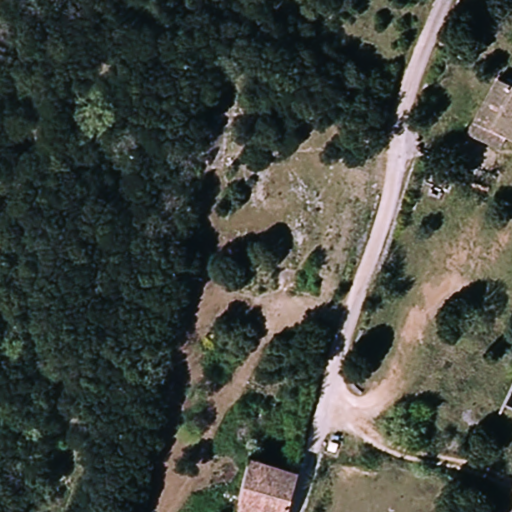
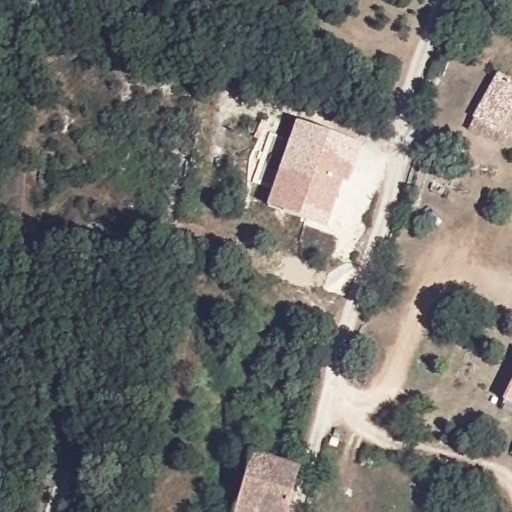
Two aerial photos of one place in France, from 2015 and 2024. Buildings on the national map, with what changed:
unchanged [(233,43),(232,67),(214,67),(216,42),(233,43)]
unchanged [(512,86),(512,138),(504,135),(498,145),(468,130),(473,120),(498,79),(512,86)]
unchanged [(234,113),(224,158),(207,154),(213,111),(234,113)]
new [(344,180),(327,227),(268,206),(299,122),(363,144),(350,182),(344,180)]
new [(512,385),(512,403),(506,400),(512,385)]
unchanged [(296,464),(286,512),(229,512),(242,454),(296,464)]

